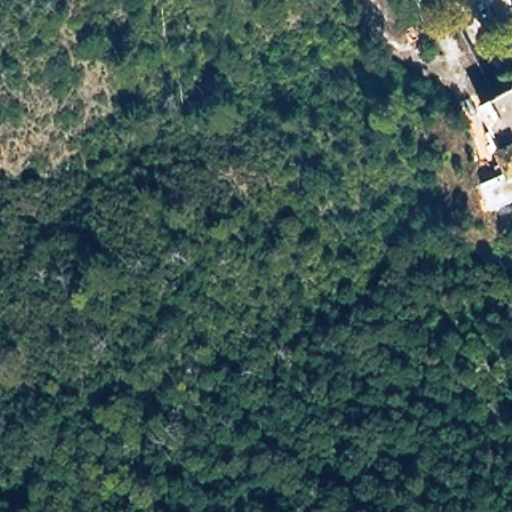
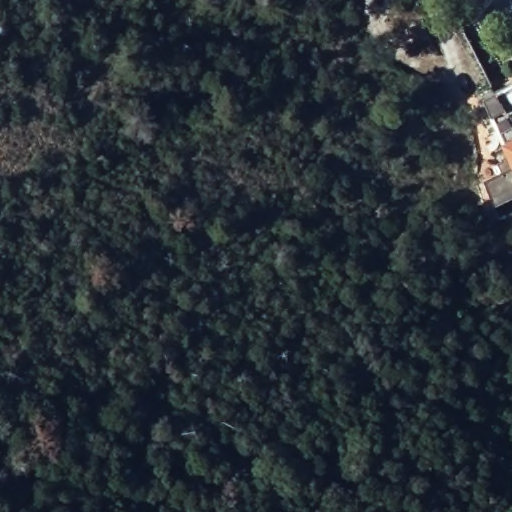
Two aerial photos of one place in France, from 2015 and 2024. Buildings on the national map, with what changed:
unchanged [(508,172),(482,110),(512,94),(512,204),(490,215),(478,187),(508,172)]

